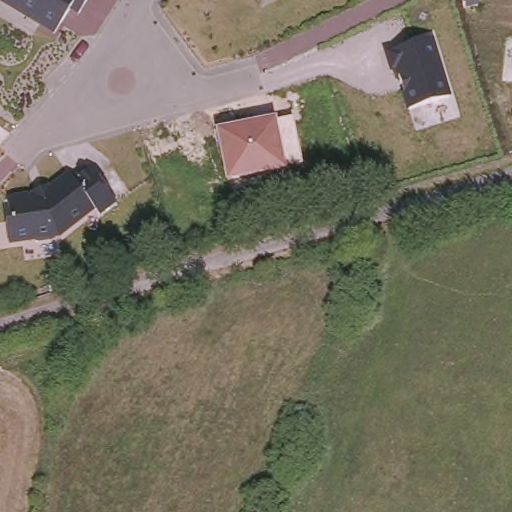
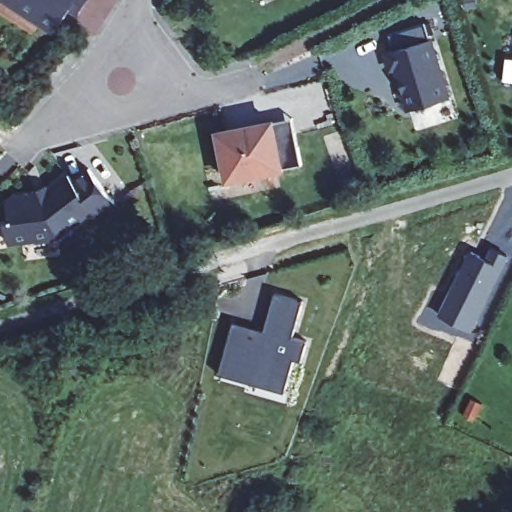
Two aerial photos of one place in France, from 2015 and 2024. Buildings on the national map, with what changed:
unchanged [(69,11),(55,34),(1,0),(88,0),(79,16),(69,11)]
unchanged [(384,52),(390,49),(385,32),(422,21),(427,37),(431,36),(451,98),(407,110),(396,72),(390,73),(384,52)]
unchanged [(504,58),(512,59),(512,82),(502,81),(504,58)]
unchanged [(293,118),(303,167),(285,172),(226,183),(216,132),(275,120),(293,118)]
unchanged [(48,189),(68,174),(74,181),(89,170),(116,206),(100,218),(96,212),(60,240),(54,240),(54,242),(36,245),(36,242),(9,245),(6,222),(10,215),(8,200),(31,195),(48,189)]
new [(473,252),(494,262),(499,251),(510,257),(473,331),(442,316),(473,252)]
new [(244,384),(216,376),(231,326),(250,331),(249,336),(260,339),(273,295),(301,303),(291,339),(304,343),(299,363),(291,361),(284,387),(283,395),(244,384)]
new [(231,324),(262,332),(260,339),(249,336),(250,331),(231,326),(231,324)]

